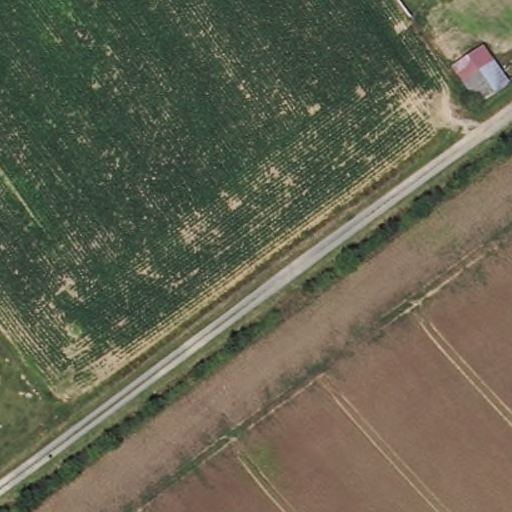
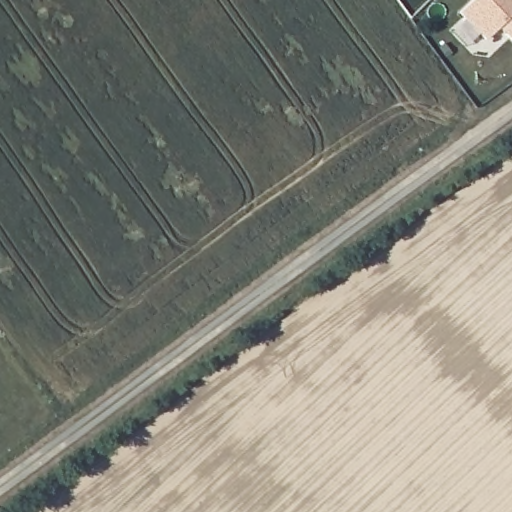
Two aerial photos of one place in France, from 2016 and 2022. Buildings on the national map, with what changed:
new [(485,39),(459,12),(471,0),(512,0),(512,40),(498,26),(485,39)]
unchanged [(512,83),(512,85),(477,106),(451,67),(484,46),(512,83)]

